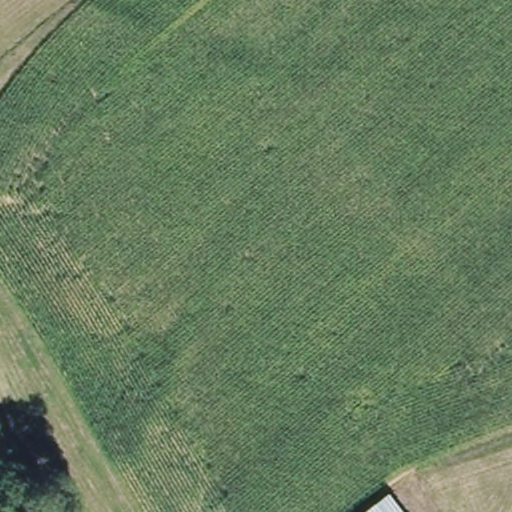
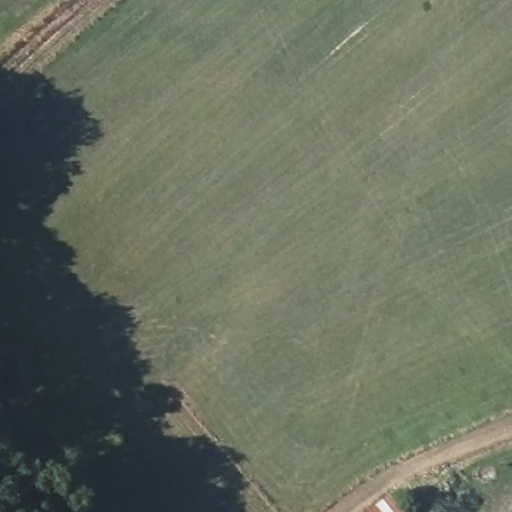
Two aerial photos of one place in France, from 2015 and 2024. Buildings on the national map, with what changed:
unchanged [(409,512),(363,512),(388,490),(409,512)]

